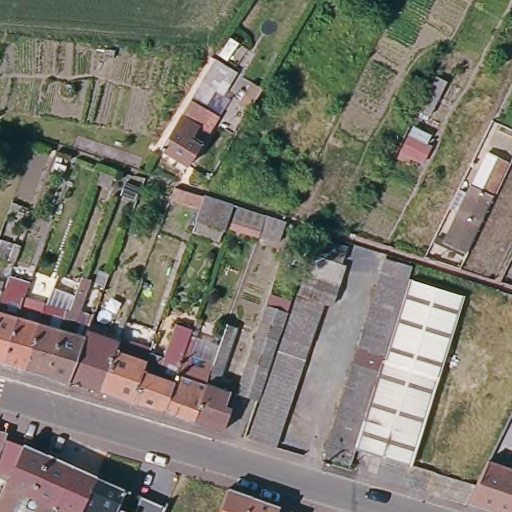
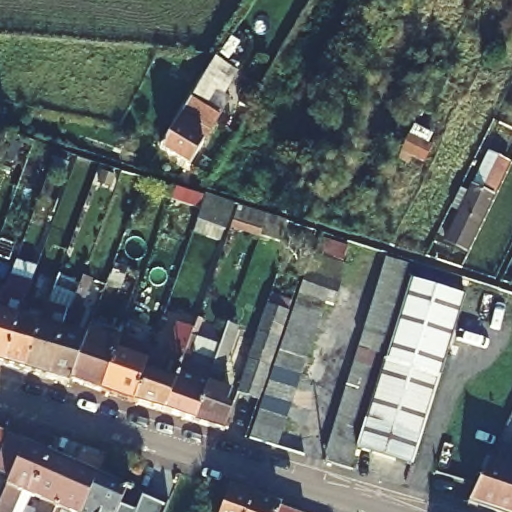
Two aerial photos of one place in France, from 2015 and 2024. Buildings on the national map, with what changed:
unchanged [(235,69),(218,94),(232,103),(188,171),(155,150),(211,58),(235,69)]
unchanged [(441,130),(422,164),(393,152),(413,121),(441,130)]
unchanged [(463,261),(445,252),(473,195),(481,199),(497,167),(507,171),(463,261)]
unchanged [(164,201),(168,188),(198,198),(226,206),(217,231),(190,223),(194,210),(164,201)]
unchanged [(276,245),(255,238),(262,218),(283,225),(276,245)]
unchanged [(343,261),(316,252),(321,237),(348,246),(343,261)]
unchanged [(345,265),(331,305),(326,304),(276,447),(250,439),(313,254),(345,265)]
unchanged [(386,258),(412,265),(407,281),(384,359),(356,448),(350,469),(324,461),(386,258)]
unchanged [(89,337),(84,351),(70,379),(69,383),(48,377),(65,319),(68,310),(80,276),(90,280),(73,331),(86,336),(89,337)]
unchanged [(464,298),(438,377),(384,359),(407,281),(464,298)]
unchanged [(0,362),(0,297),(2,291),(24,298),(18,316),(3,364),(0,362)]
unchanged [(238,391),(270,296),(291,303),(258,399),(238,391)]
unchanged [(40,323),(44,312),(65,319),(48,377),(25,370),(40,323)]
unchanged [(3,364),(18,316),(40,323),(25,370),(3,364)]
unchanged [(194,420),(164,411),(163,410),(191,333),(196,318),(205,322),(199,339),(203,340),(197,356),(199,357),(193,377),(198,379),(193,391),(203,395),(194,420)]
unchanged [(203,395),(228,323),(238,327),(218,385),(231,391),(227,404),(233,407),(224,430),(194,420),(203,395)]
unchanged [(146,360),(150,351),(163,355),(174,327),(191,333),(163,410),(136,402),(133,401),(146,360)]
unchanged [(84,351),(89,337),(86,336),(88,330),(118,340),(114,349),(100,390),(70,379),(84,351)]
unchanged [(100,390),(114,349),(146,360),(133,401),(100,390)]
unchanged [(384,359),(438,377),(437,378),(410,464),(356,448),(384,359)]
unchanged [(7,432),(1,445),(0,448),(0,429),(7,432)]
unchanged [(0,488),(0,455),(4,447),(19,453),(23,445),(47,454),(28,496),(18,492),(14,502),(24,507),(22,512),(0,512),(0,496),(3,490),(0,488)]
unchanged [(71,464),(50,512),(35,512),(39,501),(28,496),(47,454),(71,464)]
unchanged [(509,467),(512,460),(512,512),(492,512),(468,504),(489,460),(509,467)]
unchanged [(96,475),(80,512),(50,512),(71,464),(96,475)]
unchanged [(126,488),(116,511),(119,512),(120,512),(80,512),(96,475),(126,488)]
unchanged [(229,487),(251,495),(244,512),(219,512),(228,489),(229,487)]
unchanged [(167,506),(164,512),(133,512),(141,495),(167,506)]
unchanged [(300,512),(244,512),(251,495),(300,512)]

